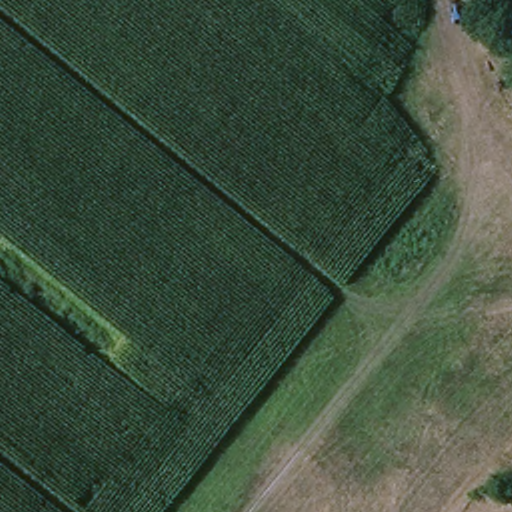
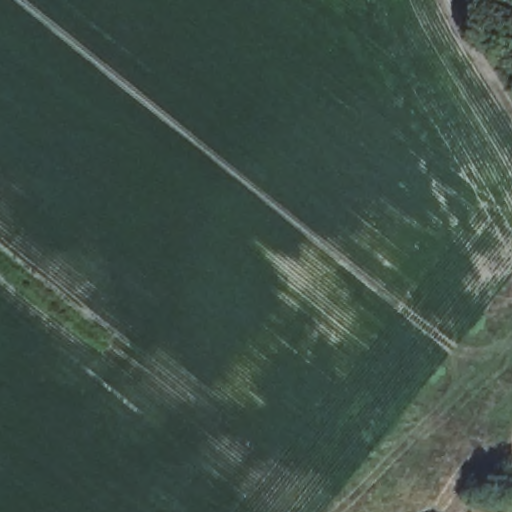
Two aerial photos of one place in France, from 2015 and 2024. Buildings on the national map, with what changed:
[]

